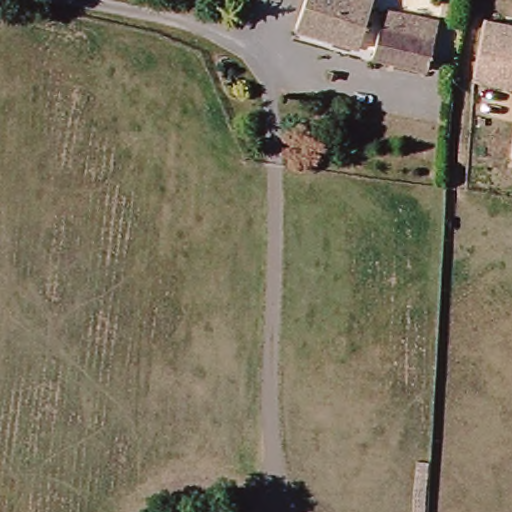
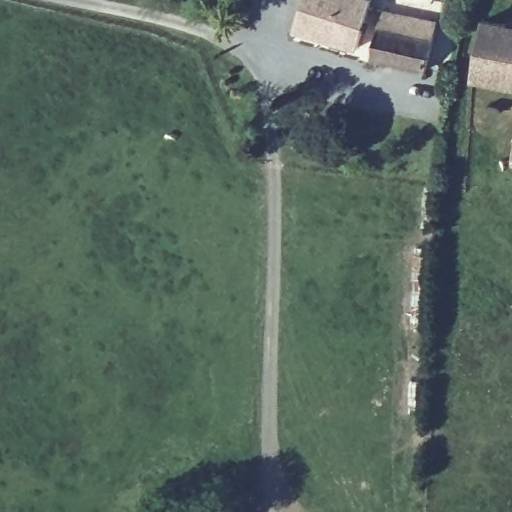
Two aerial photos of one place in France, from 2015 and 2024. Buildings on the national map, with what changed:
unchanged [(356,44),(290,30),(302,0),(368,0),(356,44)]
unchanged [(368,57),(380,11),(432,25),(421,71),(368,57)]
unchanged [(456,76),(467,17),(512,26),(512,89),(495,84),(456,76)]
unchanged [(215,512),(216,511),(219,512),(215,512)]

